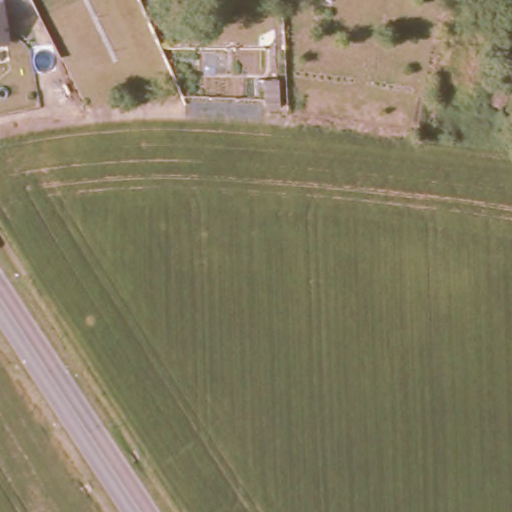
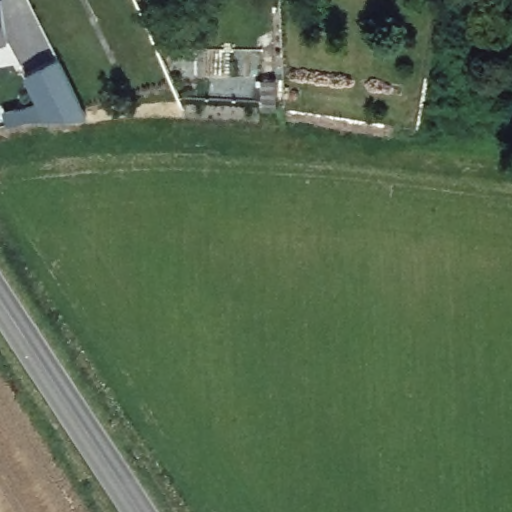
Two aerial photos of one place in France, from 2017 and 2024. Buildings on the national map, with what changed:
unchanged [(9,42),(0,44),(0,0),(2,0),(9,42)]
new [(4,110),(40,100),(27,73),(60,56),(89,111),(28,119),(7,123),(4,110)]
unchanged [(263,81),(277,81),(277,110),(262,110),(263,81)]

